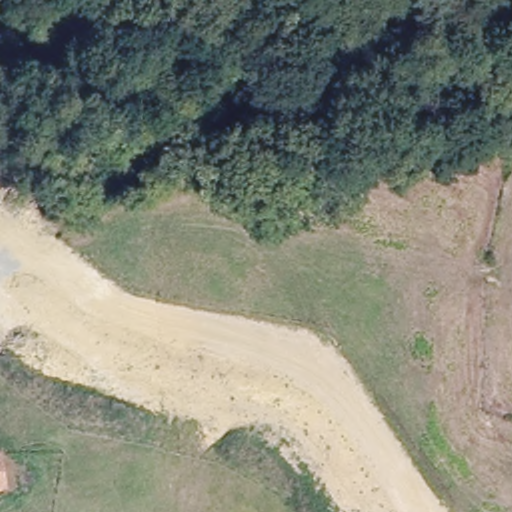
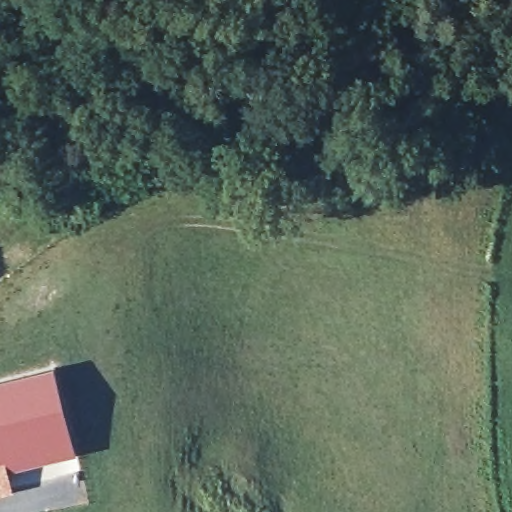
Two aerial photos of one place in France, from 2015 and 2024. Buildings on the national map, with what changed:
new [(55,365),(77,452),(9,469),(14,490),(0,494),(0,379),(55,365)]
demolished [(5,486),(0,488),(0,471),(5,486)]

